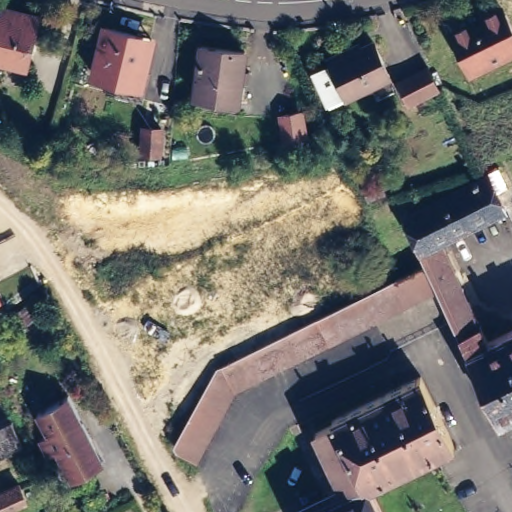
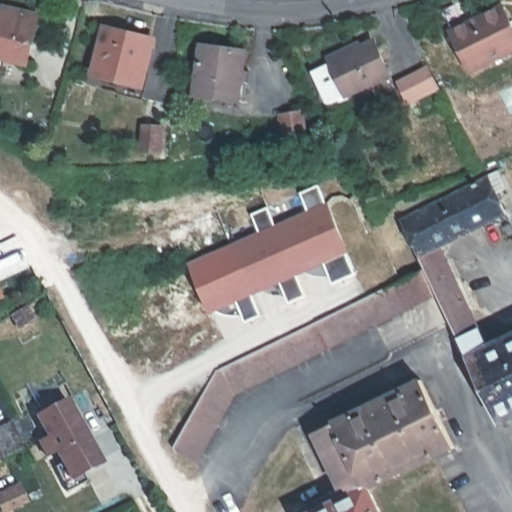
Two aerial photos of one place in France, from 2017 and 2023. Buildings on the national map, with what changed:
unchanged [(512,18),(512,53),(475,70),(456,31),(507,6),(512,18)]
unchanged [(34,20),(22,69),(0,64),(0,12),(4,13),(34,20)]
unchanged [(152,43),(150,52),(140,90),(94,79),(105,32),(136,39),(152,43)]
unchanged [(377,97),(370,84),(346,95),(345,94),(327,102),(312,71),(331,62),(330,61),(328,56),(357,42),(360,47),(373,40),(389,75),(395,89),(377,97)]
unchanged [(237,81),(232,81),(229,100),(185,94),(191,45),(235,51),(232,71),(239,72),(237,81)]
unchanged [(429,67),(439,88),(409,102),(399,82),(429,67)]
unchanged [(296,112),(300,136),(280,139),(276,115),(296,112)]
unchanged [(162,126),(160,150),(142,149),(144,125),(162,126)]
unchanged [(494,430),(444,326),(420,337),(407,312),(395,285),(419,273),(397,225),(485,182),(492,178),(499,192),(492,196),(502,216),(433,251),(482,352),(512,337),(512,421),(494,430)]
new [(257,232),(249,212),(265,205),(274,225),(306,212),(297,191),(316,183),(354,273),(330,283),(320,260),(294,271),(304,294),(287,301),(277,278),(203,303),(190,262),(257,232)]
unchanged [(380,185),(383,195),(369,200),(365,191),(380,185)]
unchanged [(173,458),(169,451),(210,375),(215,373),(395,285),(407,312),(420,337),(384,354),(372,329),(229,398),(190,468),(173,458)]
unchanged [(0,294),(2,298),(0,300),(0,294)]
unchanged [(25,308),(32,319),(19,327),(12,316),(25,308)]
unchanged [(449,452),(364,493),(373,512),(316,512),(340,500),(329,478),(319,458),(310,439),(329,430),(327,427),(416,384),(449,452)]
unchanged [(106,465),(70,480),(57,456),(42,462),(35,445),(47,437),(37,415),(70,397),(106,465)]
unchanged [(23,447),(0,458),(0,427),(12,422),(23,447)]
unchanged [(25,500),(2,511),(0,508),(0,494),(19,485),(25,500)]

